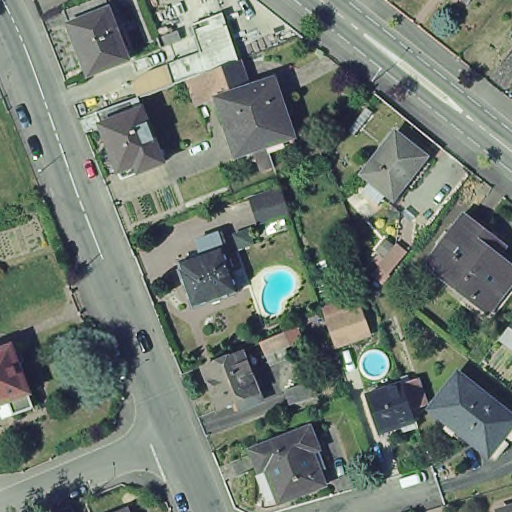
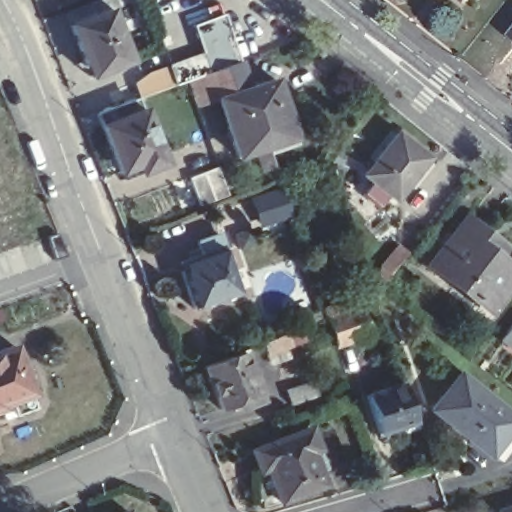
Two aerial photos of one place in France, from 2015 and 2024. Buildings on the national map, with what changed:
unchanged [(66,42),(60,29),(109,10),(115,24),(105,28),(125,79),(86,95),(66,42)]
unchanged [(182,82),(168,87),(155,92),(135,100),(130,85),(143,75),(161,68),(196,54),(186,27),(219,15),(235,63),(242,83),(245,90),(270,80),(279,103),(270,106),(283,143),(265,150),(272,170),(261,174),(254,154),(235,161),(230,146),(215,106),(214,101),(213,98),(192,104),(182,82)]
unchanged [(97,127),(95,119),(93,115),(135,100),(139,111),(140,114),(160,164),(120,181),(97,127)]
unchanged [(359,178),(390,135),(421,159),(390,202),(359,178)]
unchanged [(258,227),(247,197),(280,185),(290,214),(258,227)]
unchanged [(422,266),(452,228),(460,219),(477,233),(499,250),(492,259),(512,276),(512,278),(483,315),(422,266)]
unchanged [(180,278),(183,277),(180,269),(201,260),(196,245),(216,238),(222,252),(240,297),(195,314),(180,278)]
unchanged [(410,254),(385,287),(374,277),(398,244),(408,251),(410,254)]
unchanged [(372,335),(336,347),(327,319),(323,309),(359,297),(362,308),(372,335)]
unchanged [(266,366),(258,345),(294,330),(298,341),(276,350),(280,361),(266,366)]
unchanged [(5,347),(17,352),(20,362),(16,369),(26,394),(25,394),(30,407),(10,415),(9,412),(5,414),(0,402),(0,349),(5,347)]
unchanged [(235,411),(233,405),(215,412),(198,370),(238,354),(256,396),(259,402),(235,411)]
unchanged [(431,412),(458,377),(512,419),(512,439),(507,446),(494,462),(484,454),(431,412)]
unchanged [(310,380),(316,395),(292,403),(287,389),(310,380)]
unchanged [(404,384),(418,429),(402,434),(400,428),(380,434),(367,396),(404,384)]
unchanged [(282,503),(268,469),(274,466),(266,446),(305,431),(314,452),(307,454),(321,487),(282,503)]
unchanged [(125,507),(127,512),(112,512),(125,507)]
unchanged [(499,512),(512,508),(512,512),(499,512)]

